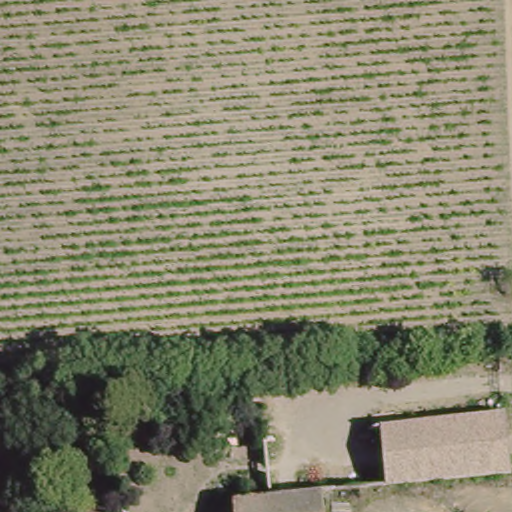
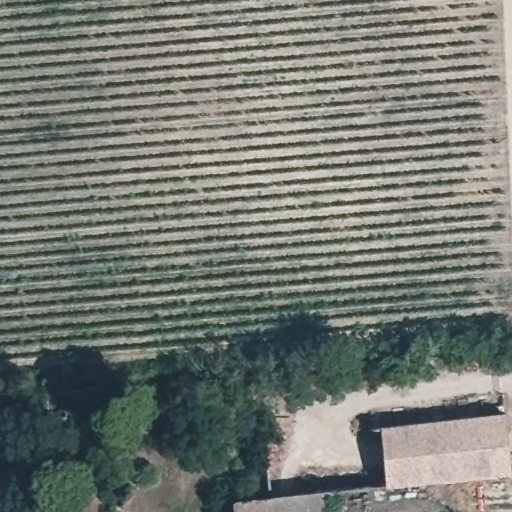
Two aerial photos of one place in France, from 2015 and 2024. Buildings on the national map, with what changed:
unchanged [(506,411),(510,473),(390,485),(385,424),(506,411)]
unchanged [(323,490),(326,512),(238,512),(237,500),(323,490)]

